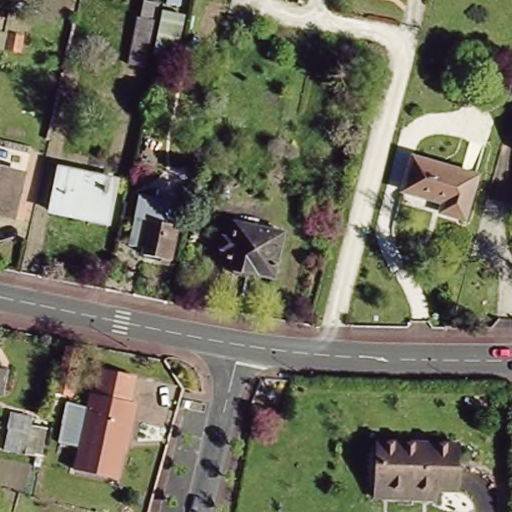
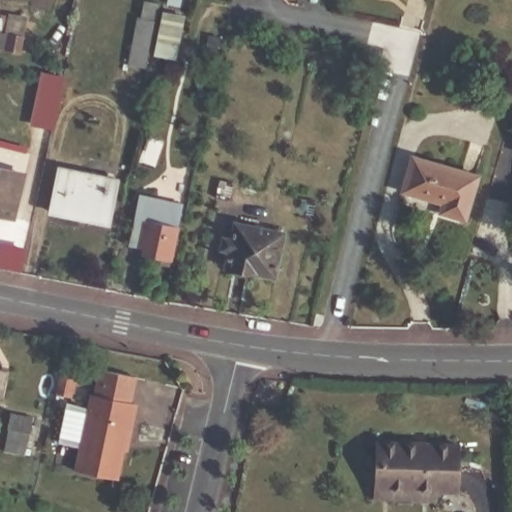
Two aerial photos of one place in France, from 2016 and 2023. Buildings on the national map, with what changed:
unchanged [(184,23),(179,47),(158,42),(163,19),(184,23)]
new [(43,77),(62,81),(52,129),(32,125),(43,77)]
unchanged [(470,214),(455,211),(447,209),(448,200),(410,192),(417,159),(467,169),(480,172),(470,214)]
unchanged [(114,182),(105,224),(52,212),(60,171),(114,182)]
unchanged [(16,217),(0,214),(0,175),(25,182),(16,217)]
unchanged [(235,183),(231,199),(217,195),(220,179),(235,183)]
unchanged [(170,258),(143,252),(143,249),(128,246),(139,195),(182,204),(170,258)]
unchanged [(320,205),(315,223),(300,220),(305,201),(320,205)]
unchanged [(247,273),(236,272),(232,267),(224,266),(233,221),(283,231),(273,276),(250,271),(247,273)]
unchanged [(3,365),(25,368),(21,395),(0,391),(0,357),(5,357),(3,365)]
unchanged [(101,367),(139,376),(133,401),(135,402),(118,477),(77,468),(93,392),(95,392),(101,367)]
unchanged [(52,442),(60,403),(90,405),(82,445),(52,442)]
unchanged [(35,422),(27,451),(5,444),(13,416),(35,422)]
unchanged [(375,484),(376,472),(377,438),(458,441),(457,487),(436,486),(435,497),(375,494),(375,484)]

